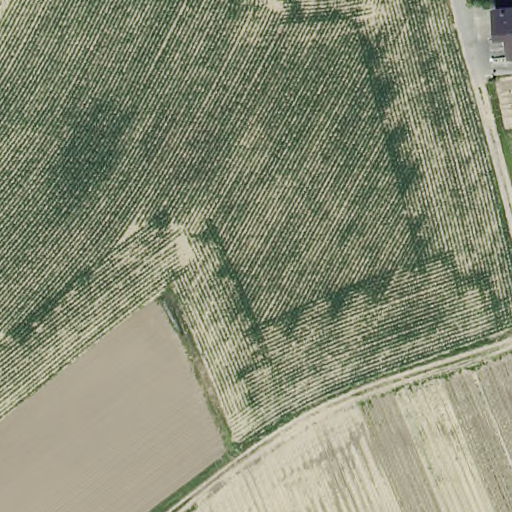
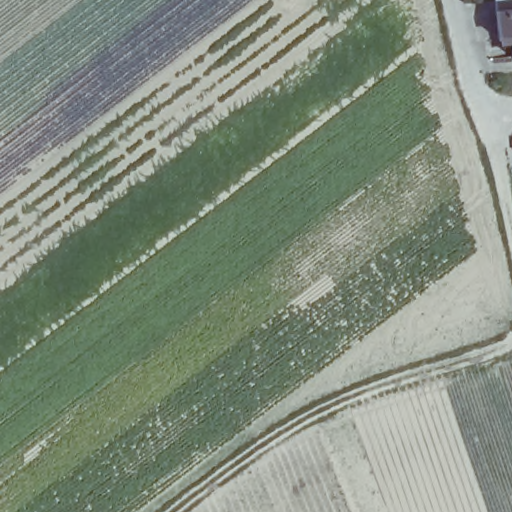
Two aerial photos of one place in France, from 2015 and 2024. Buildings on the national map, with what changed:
unchanged [(512,28),(510,15),(512,14),(512,28)]

